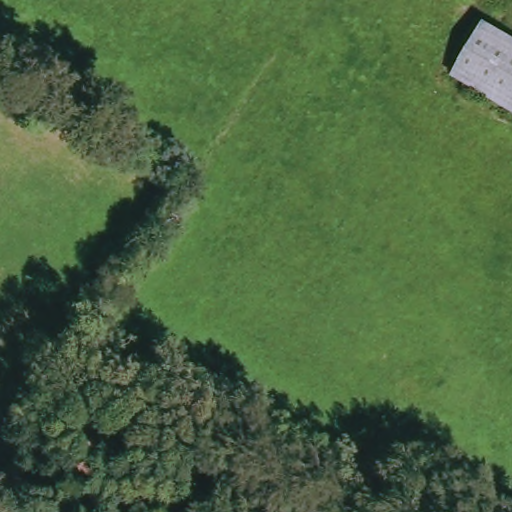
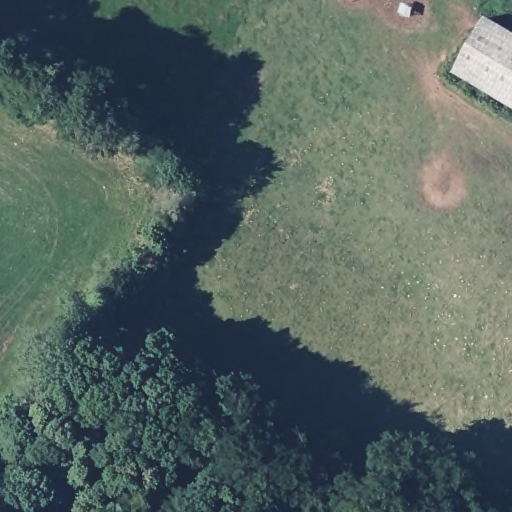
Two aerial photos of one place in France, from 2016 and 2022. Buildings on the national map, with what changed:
unchanged [(512,98),(457,63),(492,14),(512,28),(512,98)]

